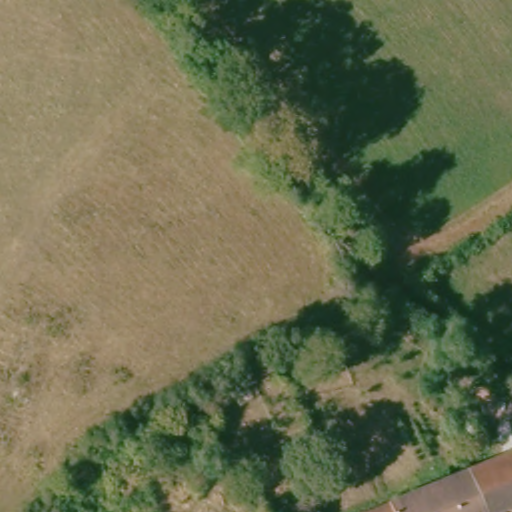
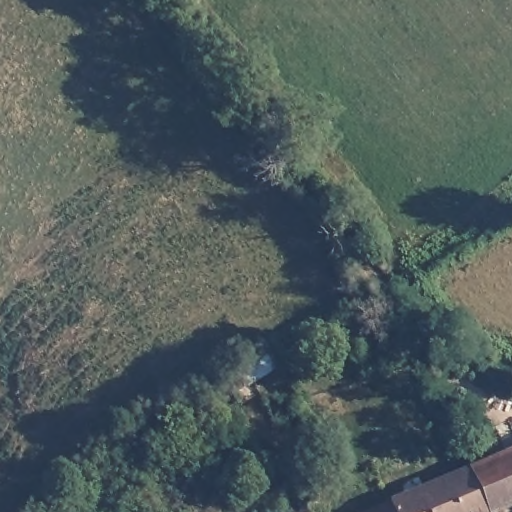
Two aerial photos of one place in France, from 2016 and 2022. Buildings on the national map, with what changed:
unchanged [(512,463),(512,512),(355,512),(352,492),(473,469),(512,463)]

